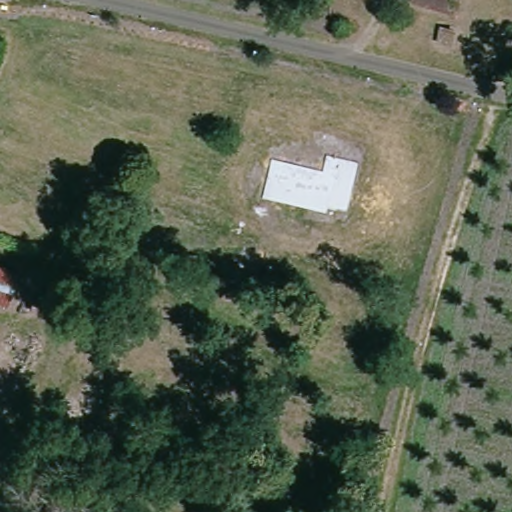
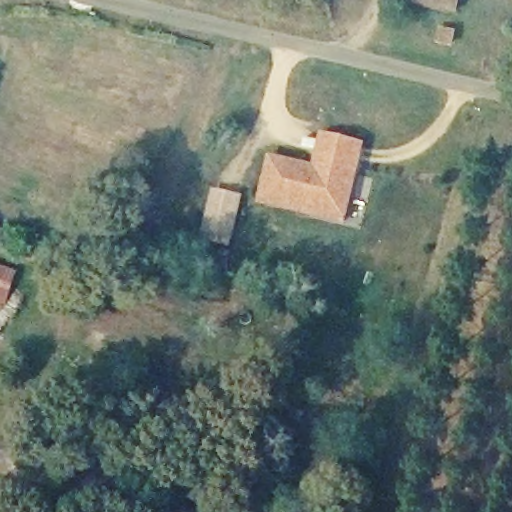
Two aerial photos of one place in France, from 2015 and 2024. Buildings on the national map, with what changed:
unchanged [(456,15),(411,0),(460,0),(456,15)]
new [(364,146),(345,226),(257,206),(267,156),(313,166),(321,135),(364,146)]
new [(242,197),(232,242),(202,236),(212,190),(242,197)]
unchanged [(6,302),(0,301),(0,263),(17,268),(6,302)]

